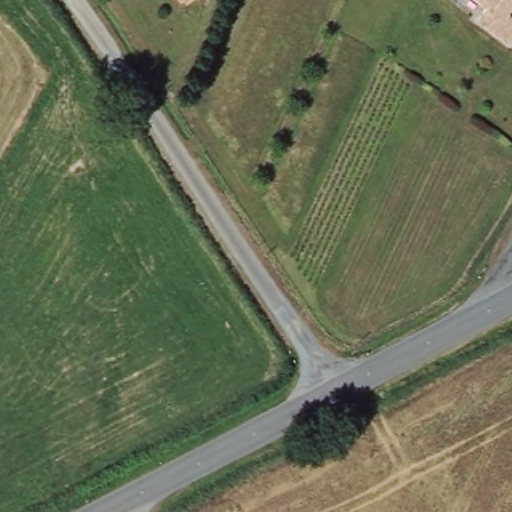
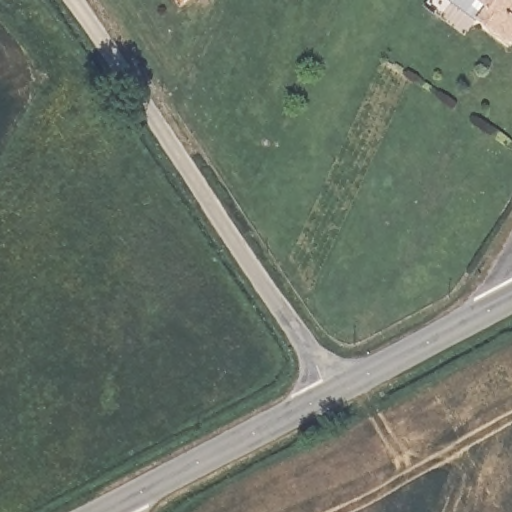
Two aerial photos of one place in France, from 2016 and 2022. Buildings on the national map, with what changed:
unchanged [(507,42),(501,37),(474,19),(483,5),(475,0),(511,0),(512,0),(512,10),(511,12),(512,13),(512,35),(507,42)]

